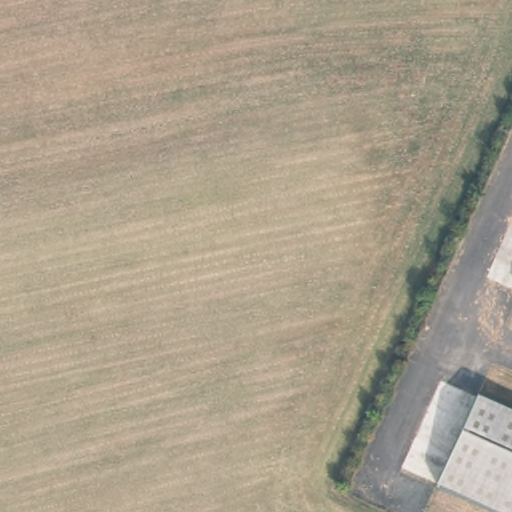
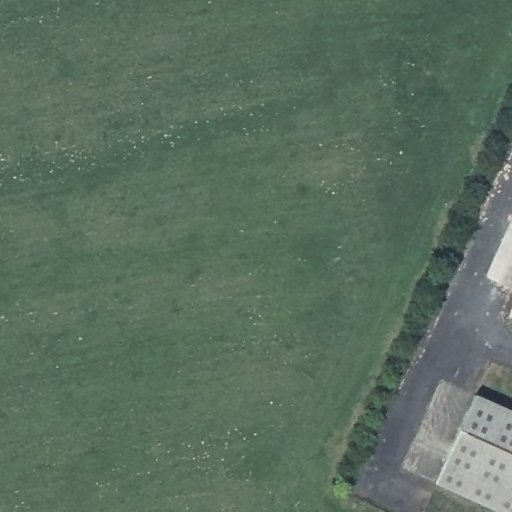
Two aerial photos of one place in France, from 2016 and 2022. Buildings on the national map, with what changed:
unchanged [(512,512),(495,512),(436,485),(477,396),(512,412),(512,512)]

